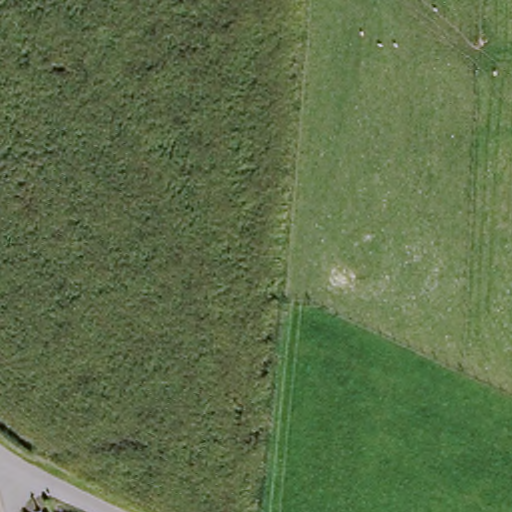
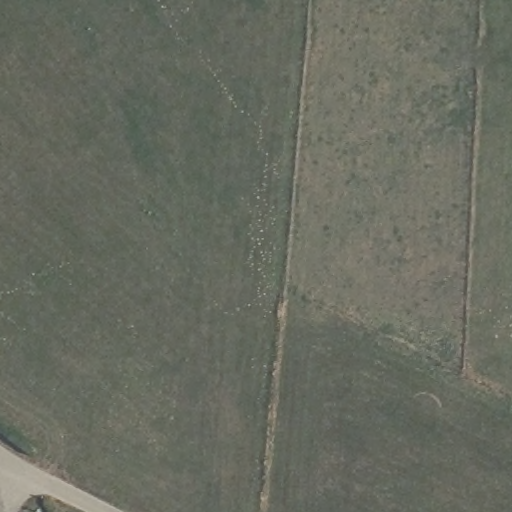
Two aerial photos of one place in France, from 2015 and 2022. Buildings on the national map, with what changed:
[]

